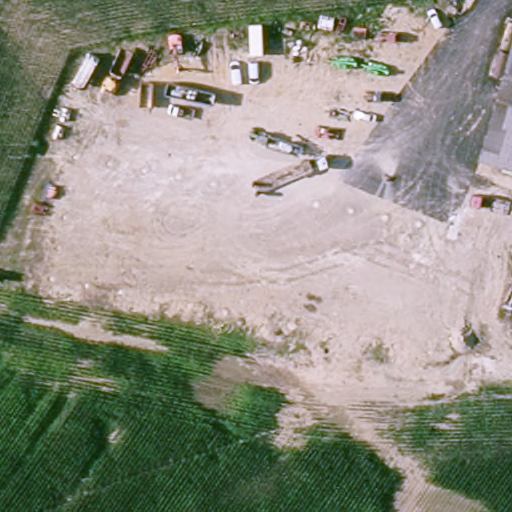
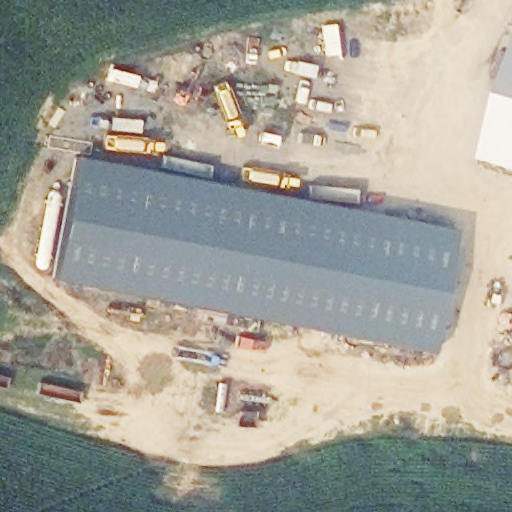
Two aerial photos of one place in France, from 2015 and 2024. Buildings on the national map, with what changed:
unchanged [(503,99),(512,69),(512,162),(487,155),(503,99)]
new [(454,230),(431,352),(52,281),(75,157),(454,230)]

